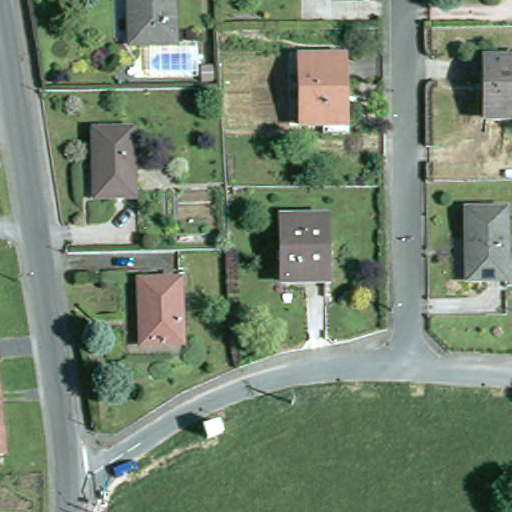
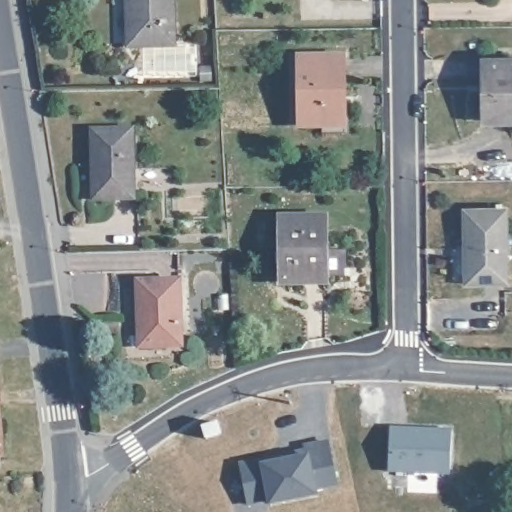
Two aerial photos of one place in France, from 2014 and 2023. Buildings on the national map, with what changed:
unchanged [(166,0),(167,16),(125,17),(125,0),(166,0)]
unchanged [(137,20),(190,18),(192,50),(138,51),(137,20)]
unchanged [(207,55),(197,55),(196,40),(206,40),(207,55)]
unchanged [(304,59),(347,58),(348,127),(305,129),(304,59)]
unchanged [(489,61),(512,61),(512,121),(488,121),(489,61)]
unchanged [(95,129),(133,129),(137,199),(98,201),(95,129)]
unchanged [(472,210),(510,210),(510,282),(470,283),(472,210)]
unchanged [(287,216),(328,217),(330,281),(290,282),(287,216)]
unchanged [(142,287),(182,286),(184,350),(145,352),(142,287)]
unchanged [(4,450),(0,450),(0,419),(4,450)]
new [(393,428),(454,432),(452,476),(391,472),(393,428)]
new [(262,461),(263,466),(287,461),(285,456),(307,452),(305,447),(328,443),(336,486),(315,490),(317,496),(270,505),(270,501),(248,504),(240,465),(262,461)]

